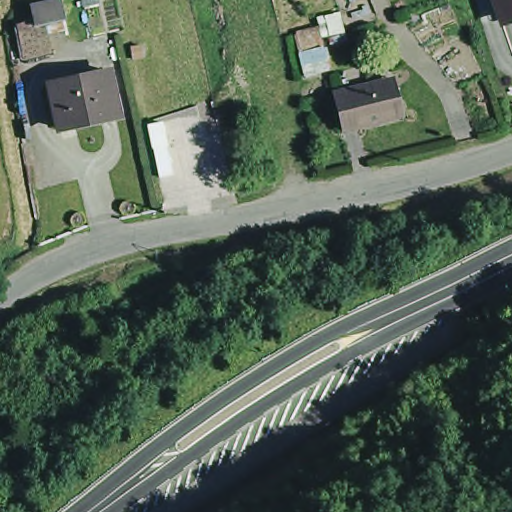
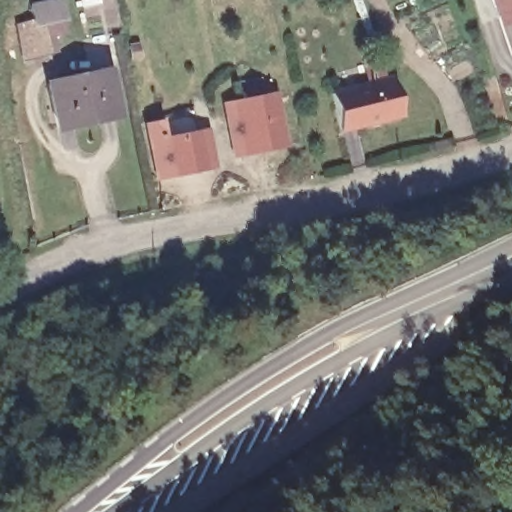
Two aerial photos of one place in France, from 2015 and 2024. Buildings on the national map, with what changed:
unchanged [(497,24),(489,0),(512,0),(512,19),(497,24)]
unchanged [(69,45),(24,47),(20,10),(64,4),(69,45)]
unchanged [(52,125),(43,80),(48,80),(100,69),(110,112),(57,125),(52,125)]
unchanged [(330,102),(384,88),(394,125),(339,138),(330,102)]
new [(222,104),(277,91),(288,146),(232,159),(222,104)]
new [(157,182),(145,124),(163,120),(167,137),(209,129),(218,167),(157,182)]

